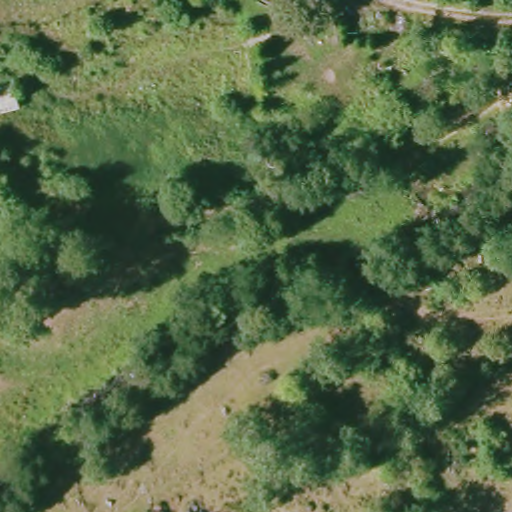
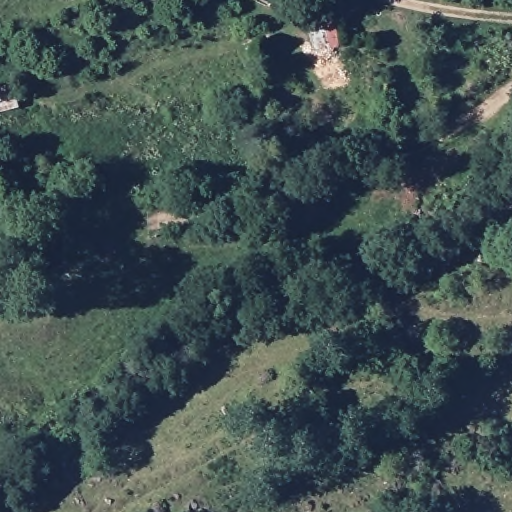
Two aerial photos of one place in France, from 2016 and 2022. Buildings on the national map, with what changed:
[]

